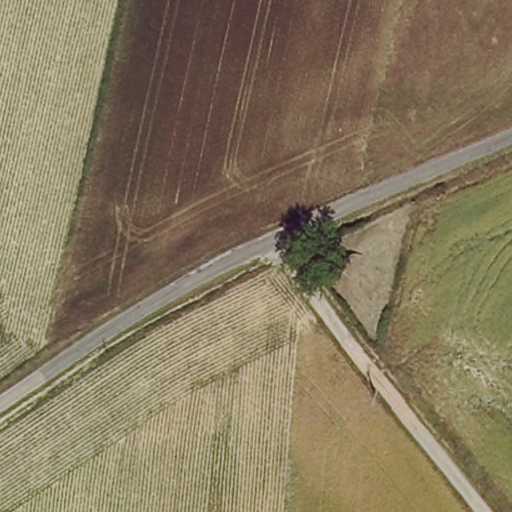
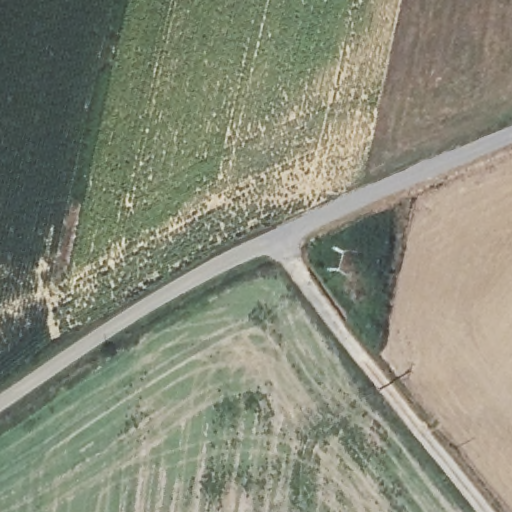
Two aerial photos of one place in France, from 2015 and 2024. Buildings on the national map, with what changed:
[]

